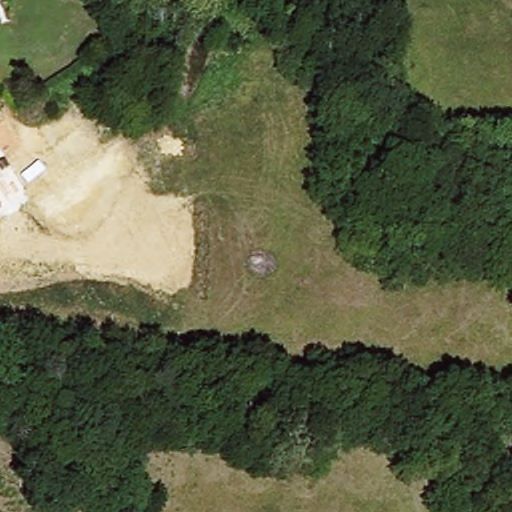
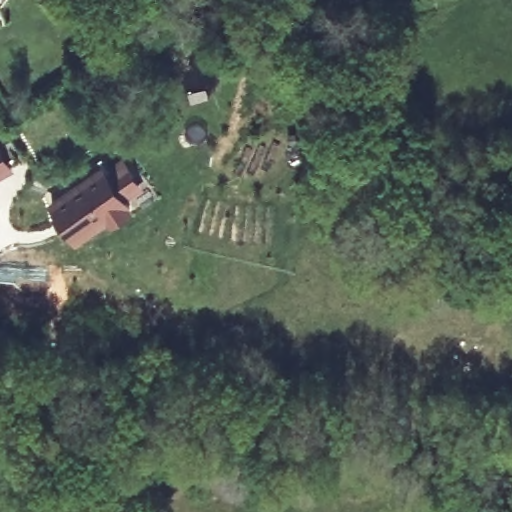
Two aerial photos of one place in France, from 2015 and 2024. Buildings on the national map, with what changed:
new [(0,175),(0,141),(15,168),(0,175)]
new [(107,179),(123,168),(123,170),(136,187),(120,199),(127,210),(108,223),(105,219),(75,240),(50,205),(100,170),(107,179)]
unchanged [(61,506),(97,505),(98,512),(61,512),(61,506)]

